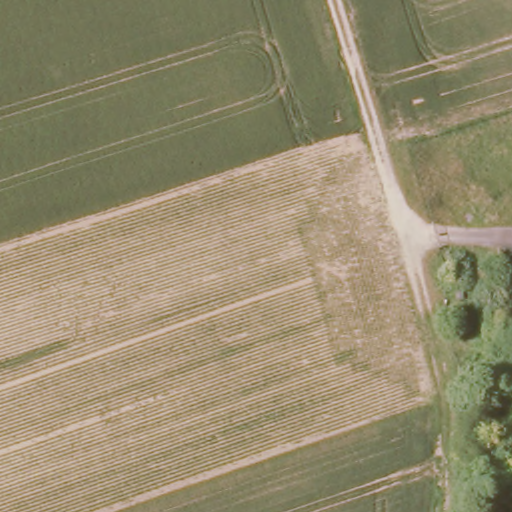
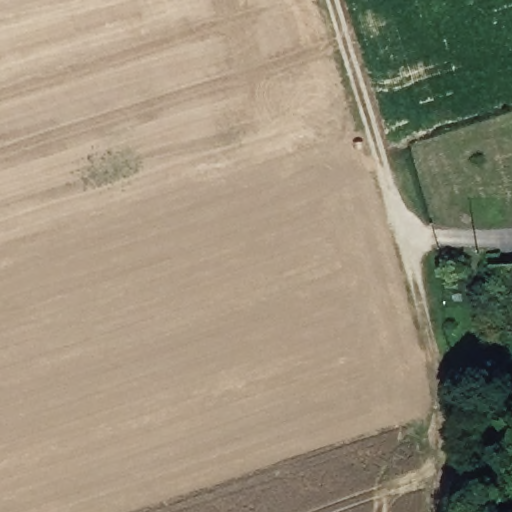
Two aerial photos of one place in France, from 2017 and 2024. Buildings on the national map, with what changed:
unchanged [(512,312),(505,305),(504,258),(512,257),(512,312)]
unchanged [(465,285),(467,293),(459,294),(458,287),(465,285)]

